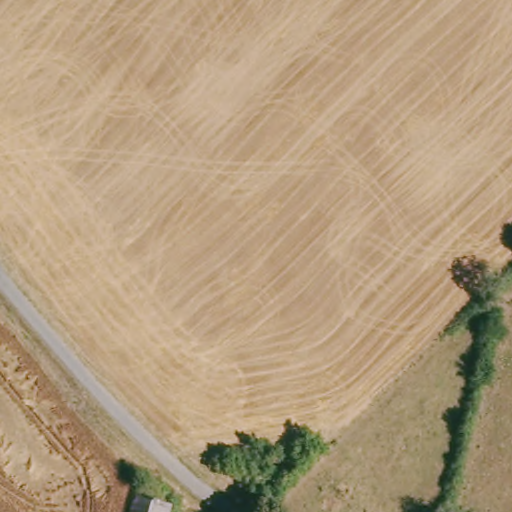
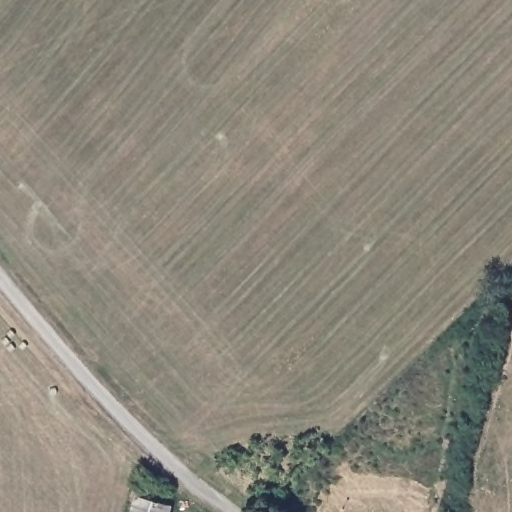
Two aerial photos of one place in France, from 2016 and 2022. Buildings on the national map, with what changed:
unchanged [(165,512),(132,512),(137,491),(169,497),(165,512)]

